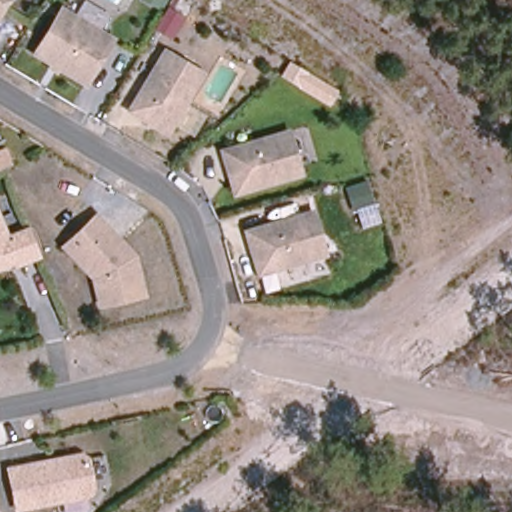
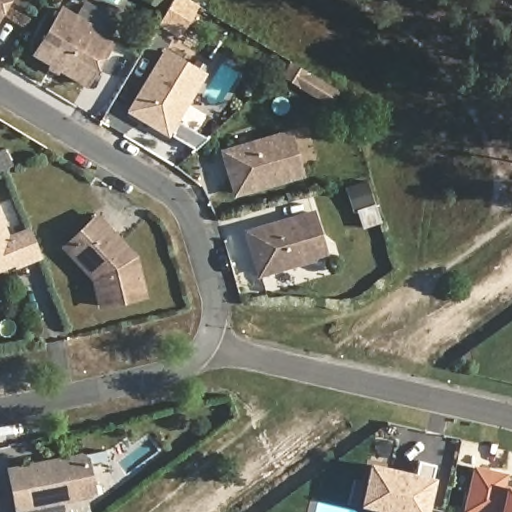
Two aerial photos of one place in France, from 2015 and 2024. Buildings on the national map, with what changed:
unchanged [(0,0),(9,0),(0,16),(0,0)]
new [(156,23),(163,12),(147,4),(149,0),(186,0),(198,7),(180,37),(156,23)]
unchanged [(81,82),(30,52),(57,7),(108,38),(81,82)]
unchanged [(125,109),(161,50),(198,72),(163,131),(149,122),(140,117),(125,109)]
new [(328,106),(309,94),(299,88),(283,78),(290,66),(307,75),(315,81),(335,92),(328,106)]
unchanged [(223,156),(289,136),(301,177),(235,197),(231,181),(228,171),(223,156)]
unchanged [(0,149),(4,147),(14,164),(0,170),(0,149)]
unchanged [(98,309),(90,278),(58,246),(95,211),(138,255),(147,297),(98,309)]
unchanged [(243,231),(308,211),(320,252),(255,272),(250,257),(248,247),(243,231)]
unchanged [(26,227),(36,252),(12,262),(0,267),(0,230),(3,237),(26,227)]
unchanged [(89,458),(96,489),(91,497),(18,512),(13,512),(4,466),(81,452),(89,458)]
new [(428,512),(379,512),(380,510),(359,505),(369,462),(416,472),(418,461),(436,465),(432,476),(436,477),(428,512)]
new [(472,465),(508,472),(505,483),(512,485),(512,512),(462,512),(472,465)]

